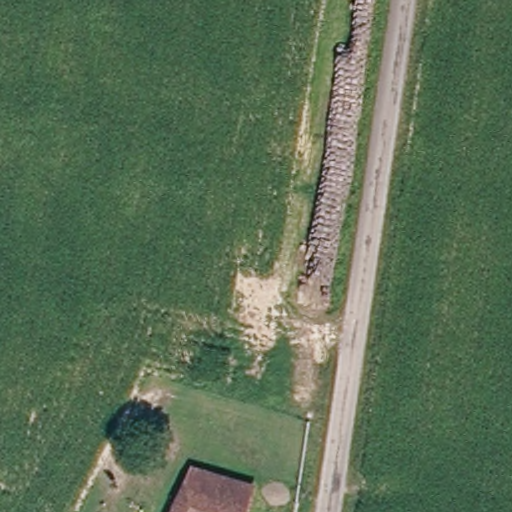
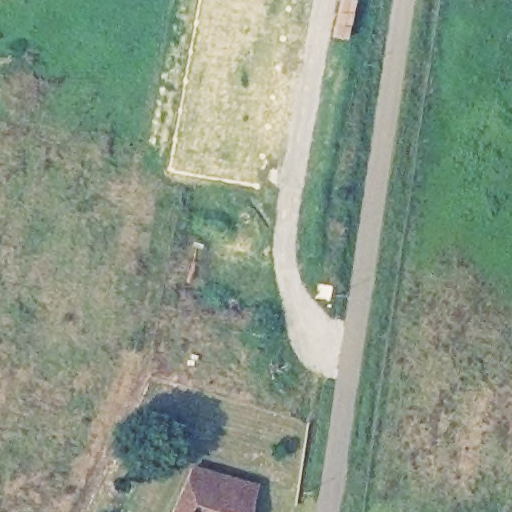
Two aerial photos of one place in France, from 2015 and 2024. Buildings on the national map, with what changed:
unchanged [(172,512),(190,462),(254,481),(245,512),(172,512)]

